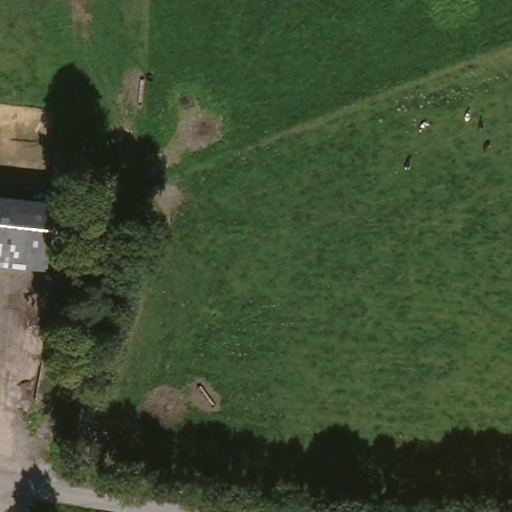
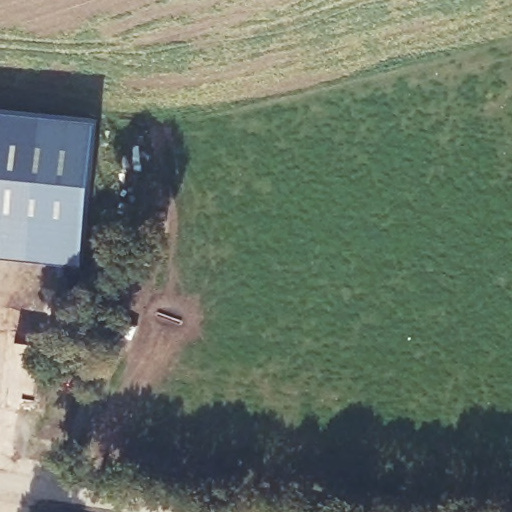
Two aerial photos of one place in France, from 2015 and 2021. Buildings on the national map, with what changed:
new [(97,121),(83,263),(0,255),(0,111),(97,121)]

